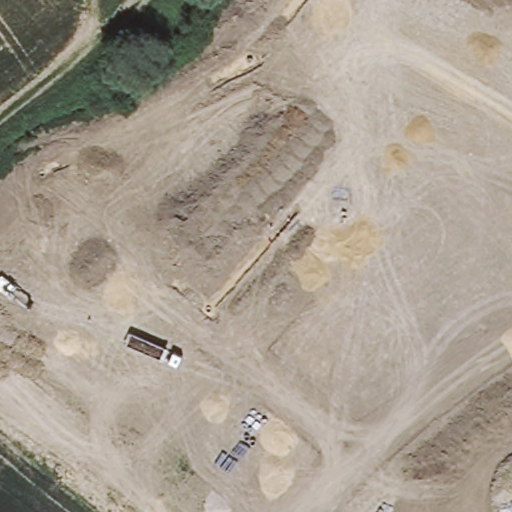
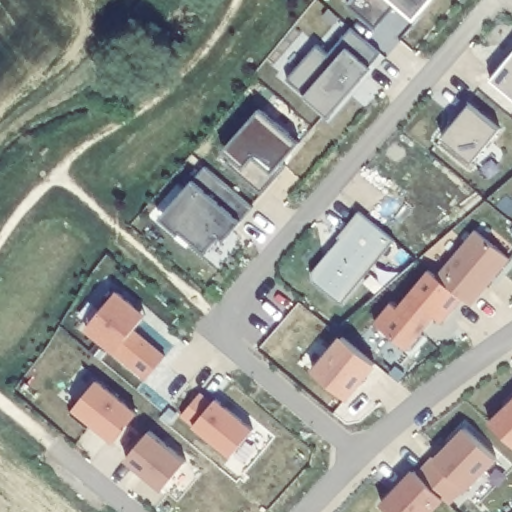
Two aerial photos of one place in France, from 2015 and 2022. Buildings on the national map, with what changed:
new [(417,18),(401,3),(377,32),(347,7),(353,0),(433,0),(417,18)]
new [(287,82),(318,46),(329,55),(352,29),(380,54),(327,116),(287,82)]
unchanged [(507,59),(510,60),(512,57),(512,99),(490,80),(507,59)]
new [(443,140),(452,127),(450,126),(467,104),(500,131),(472,166),(443,140)]
new [(227,166),(240,149),(237,146),(263,114),(298,144),(273,173),(277,177),(260,196),(227,166)]
new [(232,234),(228,231),(205,255),(179,234),(188,224),(171,208),(205,168),(253,210),(232,234)]
unchanged [(395,243),(342,308),(311,281),(311,276),(340,240),(337,238),(359,213),(395,243)]
new [(508,261),(469,305),(463,300),(442,326),(436,319),(407,352),(375,326),(390,306),(397,311),(428,272),(437,278),(475,233),(508,261)]
new [(115,351),(87,329),(118,290),(146,315),(133,329),(166,356),(146,379),(115,351)]
new [(315,373),(343,339),(375,366),(347,400),(315,373)]
new [(74,408),(98,380),(137,412),(112,441),(74,408)]
new [(194,425),(216,397),(255,429),(230,458),(194,425)]
new [(512,447),(491,426),(512,407),(512,447)]
new [(413,469),(417,472),(431,457),(433,459),(465,428),(497,460),(465,490),(450,505),(444,501),(433,512),(389,512),(381,504),(413,469)]
new [(127,459),(150,431),(186,462),(162,491),(127,459)]

